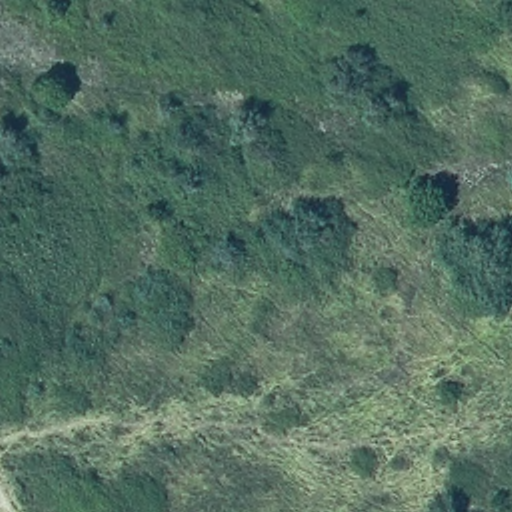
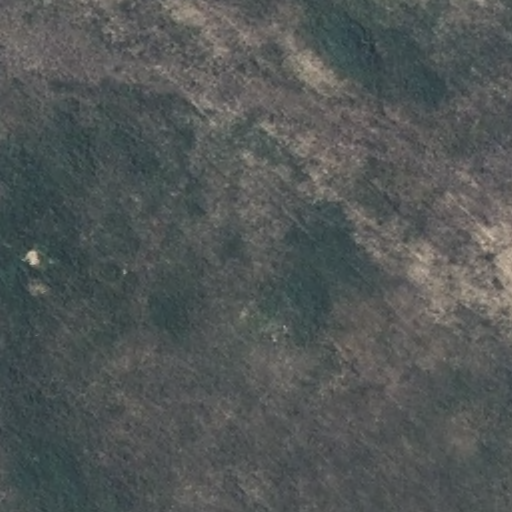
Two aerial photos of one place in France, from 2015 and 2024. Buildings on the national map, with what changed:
[]

